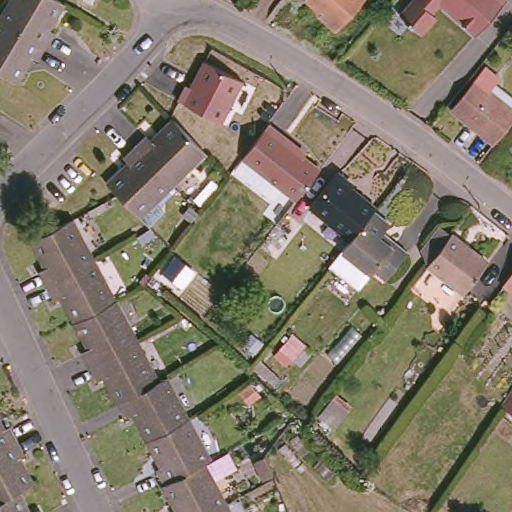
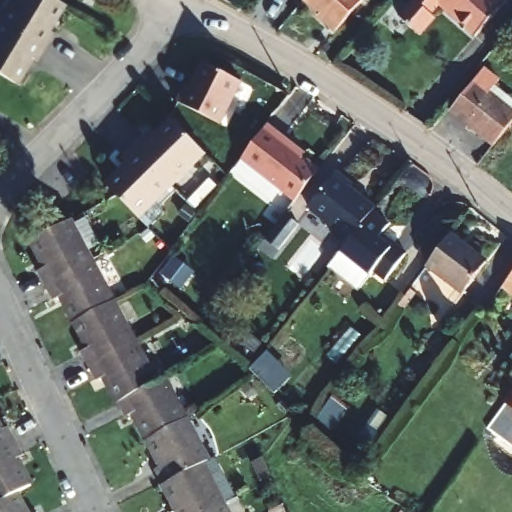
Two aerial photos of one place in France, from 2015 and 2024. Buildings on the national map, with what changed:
unchanged [(2,18),(13,0),(62,0),(65,2),(49,26),(55,30),(48,43),(2,18)]
unchanged [(338,21),(315,0),(359,0),(338,21)]
unchanged [(399,15),(413,0),(505,0),(506,2),(475,36),(441,6),(433,15),(437,19),(421,37),(399,15)]
unchanged [(40,57),(33,54),(18,79),(0,68),(0,22),(2,18),(48,43),(40,57)]
unchanged [(220,123),(177,103),(196,64),(238,83),(220,123)]
unchanged [(476,73),(512,100),(512,116),(495,137),(453,103),(476,73)]
unchanged [(143,141),(155,129),(160,134),(181,114),(213,148),(180,179),(143,141)]
unchanged [(292,142),(290,145),(316,168),(292,198),(243,155),(253,143),(270,122),(292,142)]
unchanged [(122,191),(111,180),(137,155),(133,150),(143,141),(180,179),(144,214),(122,191)]
unchanged [(305,209),(335,172),(380,205),(350,241),(305,209)]
unchanged [(386,231),(398,240),(401,237),(413,247),(392,273),(380,264),(377,268),(377,267),(365,283),(335,260),(347,244),(380,205),(396,218),(386,231)]
unchanged [(178,504),(164,478),(156,463),(165,459),(151,433),(137,407),(128,412),(121,397),(106,370),(100,373),(92,360),(85,345),(91,342),(77,315),(63,290),(56,293),(49,279),(42,265),(48,262),(33,232),(57,218),(71,210),(95,254),(116,295),(138,336),(160,377),(161,376),(167,373),(188,414),(210,453),(207,455),(202,458),(223,498),(198,512),(174,512),(171,508),(178,504)]
unchanged [(452,232),(490,260),(468,291),(430,263),(452,232)]
unchanged [(12,420),(20,433),(27,447),(20,451),(34,478),(20,486),(34,512),(0,512),(0,415),(5,424),(12,420)]
unchanged [(231,512),(198,512),(223,498),(231,512)]
unchanged [(44,512),(36,512),(42,509),(44,512)]

